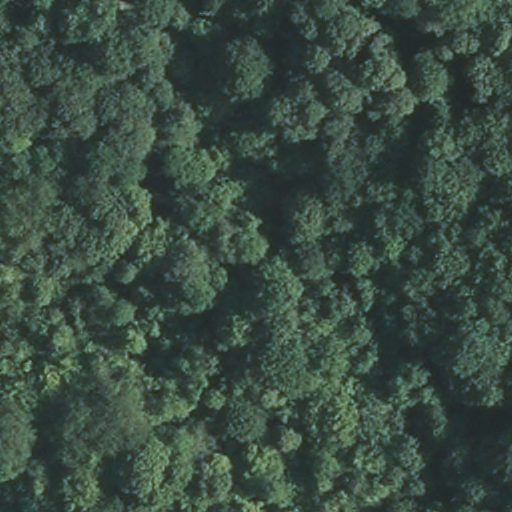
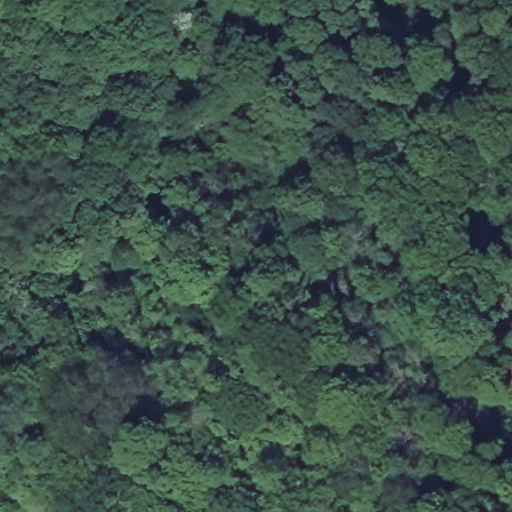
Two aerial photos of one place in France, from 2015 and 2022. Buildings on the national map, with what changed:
unchanged [(60,474),(85,481),(122,512),(28,512),(28,489),(45,475),(60,474)]

